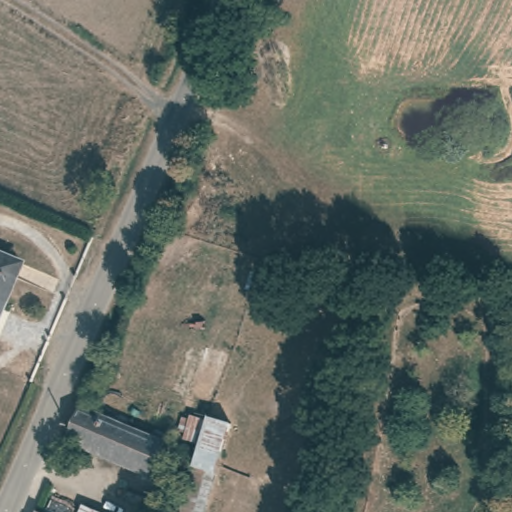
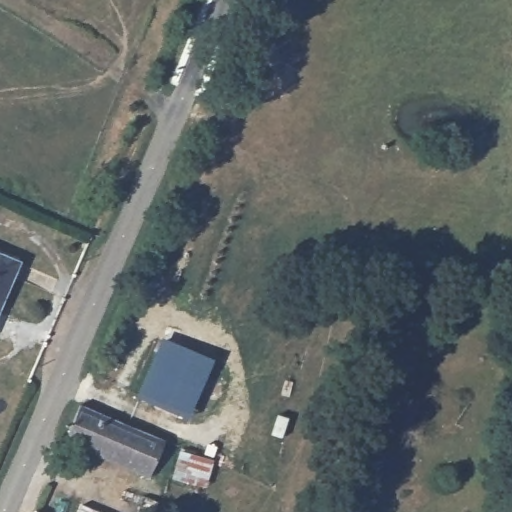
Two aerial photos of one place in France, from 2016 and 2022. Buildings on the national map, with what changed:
unchanged [(0,308),(0,256),(19,264),(0,308)]
new [(213,359),(188,420),(137,398),(162,337),(213,359)]
unchanged [(167,439),(152,478),(64,443),(79,404),(167,439)]
unchanged [(36,505),(53,512),(33,512),(36,505)]
unchanged [(92,507),(102,512),(90,512),(92,507)]

